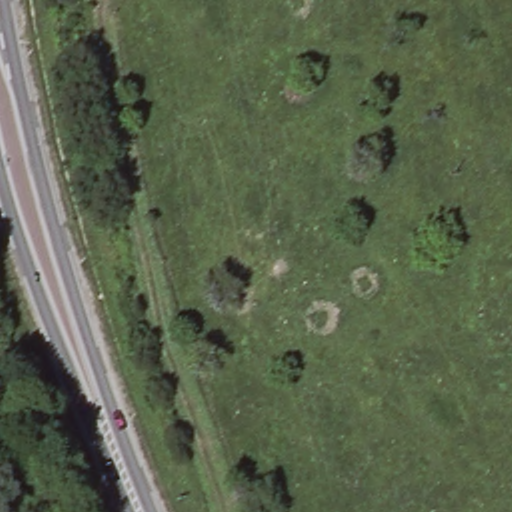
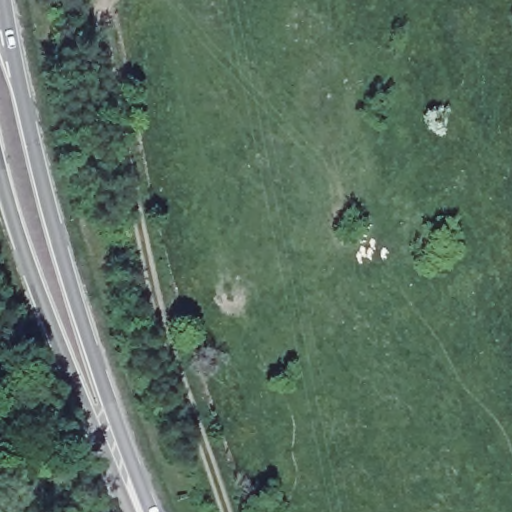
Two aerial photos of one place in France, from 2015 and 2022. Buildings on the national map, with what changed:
[]

